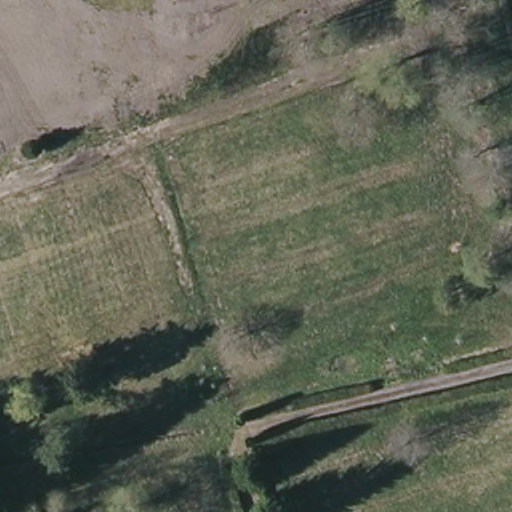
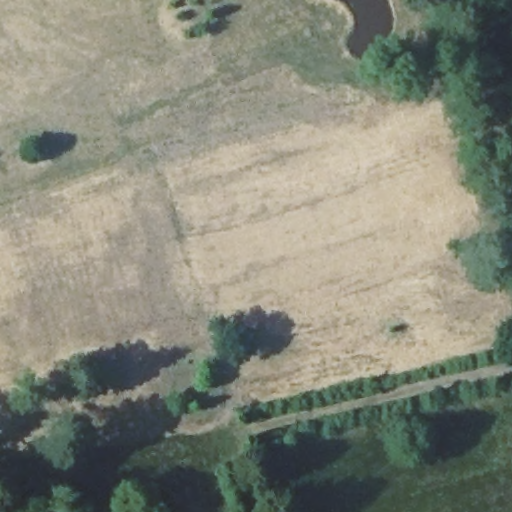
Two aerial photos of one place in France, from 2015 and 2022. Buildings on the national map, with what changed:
unchanged [(377,371),(337,380),(332,361),(372,351),(377,371)]

